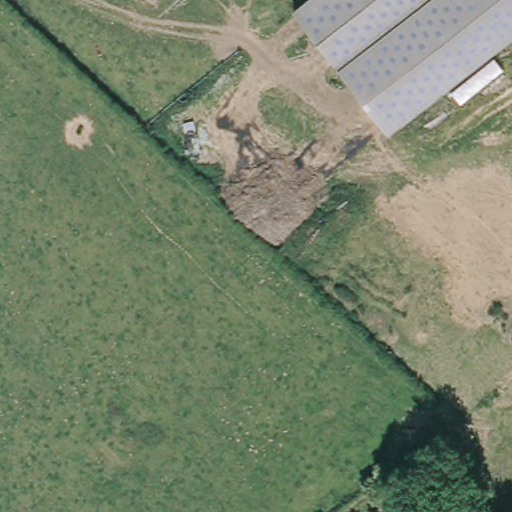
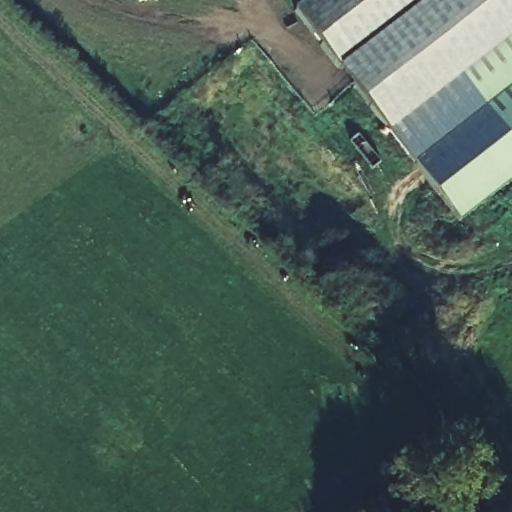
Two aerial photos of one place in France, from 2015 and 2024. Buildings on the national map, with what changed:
unchanged [(390,134),(294,8),(304,0),(512,0),(512,38),(390,134)]
new [(459,220),(390,134),(512,38),(512,179),(459,220)]

